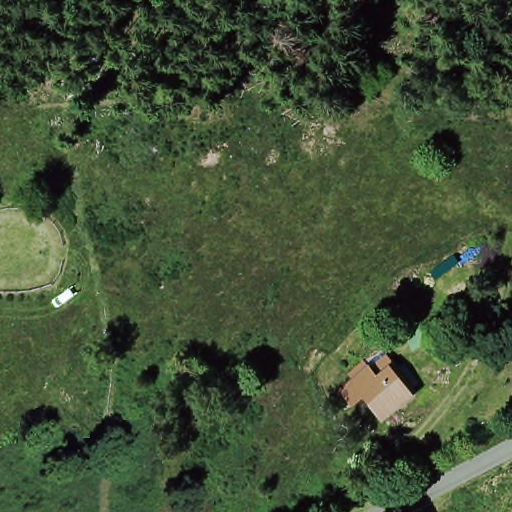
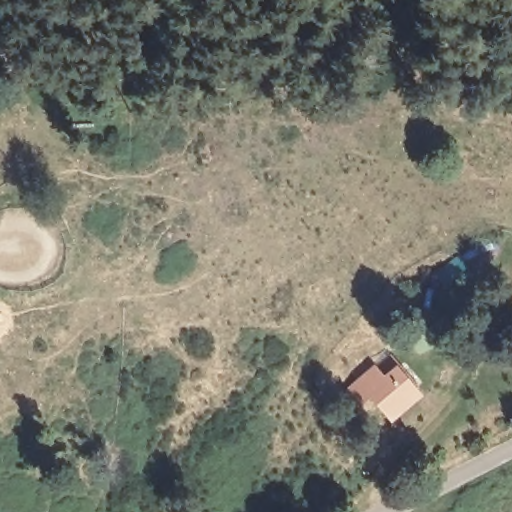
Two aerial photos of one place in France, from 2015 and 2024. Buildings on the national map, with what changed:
unchanged [(412,392),(387,414),(370,395),(397,373),(412,392)]

